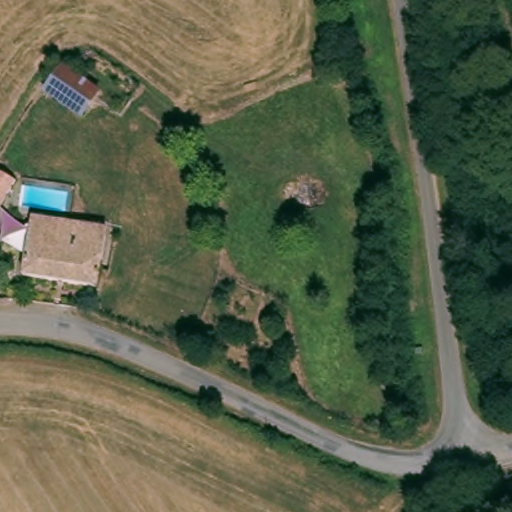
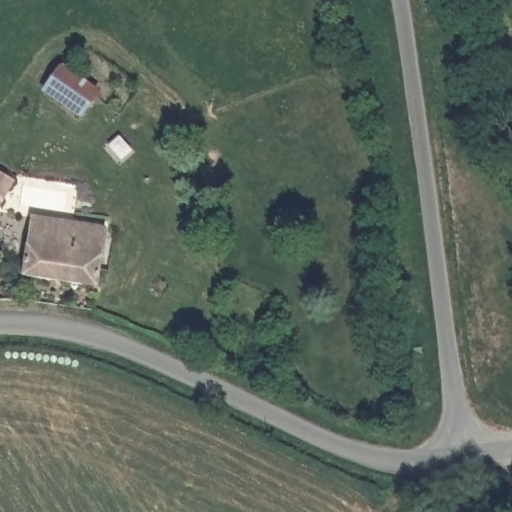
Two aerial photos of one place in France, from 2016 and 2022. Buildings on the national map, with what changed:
unchanged [(46,92),(62,66),(99,88),(83,115),(46,92)]
unchanged [(0,199),(0,178),(9,180),(2,199),(0,199)]
unchanged [(31,218),(103,230),(95,282),(21,271),(31,218)]

